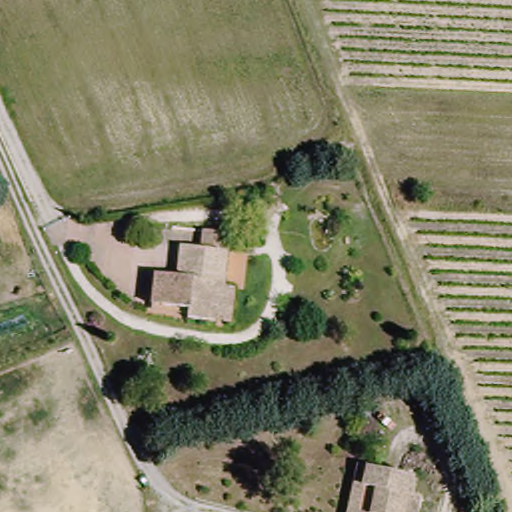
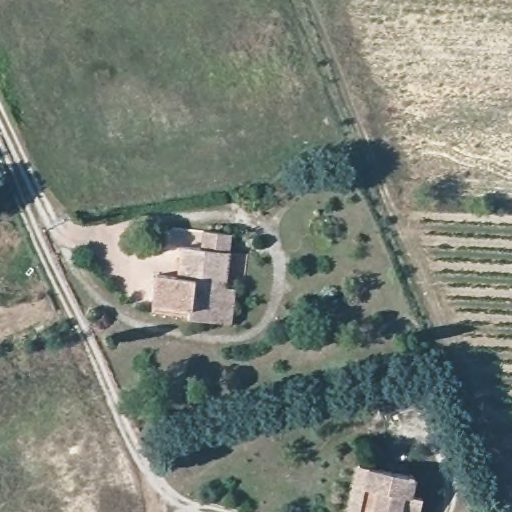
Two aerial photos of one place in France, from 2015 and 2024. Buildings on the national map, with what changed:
unchanged [(230,322),(212,320),(212,319),(186,315),(188,306),(151,301),(155,271),(177,274),(181,244),(206,248),(208,232),(232,235),(225,285),(235,287),(230,322)]
unchanged [(358,463),(373,465),(412,473),(408,494),(423,498),(419,512),(350,512),(356,482),(358,463)]

